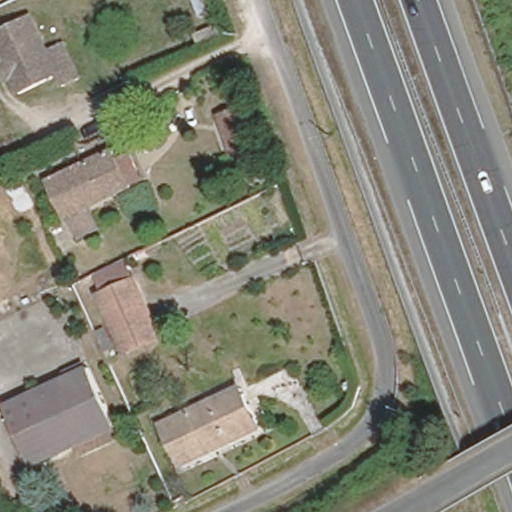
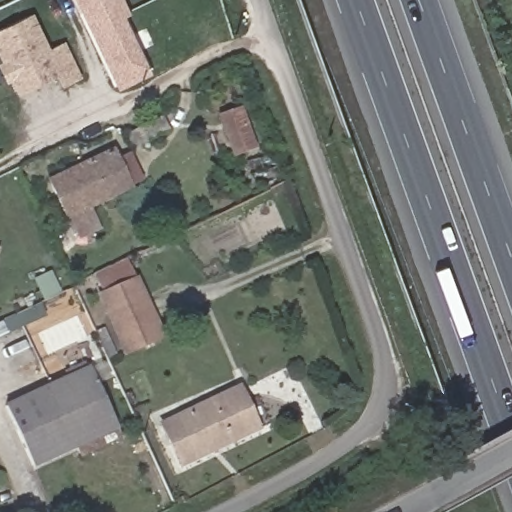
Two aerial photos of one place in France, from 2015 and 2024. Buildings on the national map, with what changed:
new [(74,0),(125,0),(132,15),(125,18),(151,75),(117,91),(74,0)]
unchanged [(0,61),(4,59),(0,51),(0,22),(28,11),(45,47),(60,41),(77,77),(61,83),(56,71),(18,87),(11,73),(5,76),(0,65),(0,61)]
unchanged [(161,120),(168,136),(131,149),(125,135),(161,120)]
unchanged [(229,121),(246,154),(228,163),(212,128),(229,121)]
unchanged [(73,235),(63,215),(46,179),(109,152),(113,161),(125,156),(134,178),(123,183),(125,188),(80,207),(89,227),(73,235)]
unchanged [(0,255),(0,247),(3,248),(0,255)]
unchanged [(126,260),(160,335),(128,349),(94,274),(126,260)]
unchanged [(80,453),(75,442),(28,463),(0,406),(86,367),(114,424),(120,434),(80,453)]
unchanged [(239,388),(257,425),(176,461),(159,423),(239,388)]

